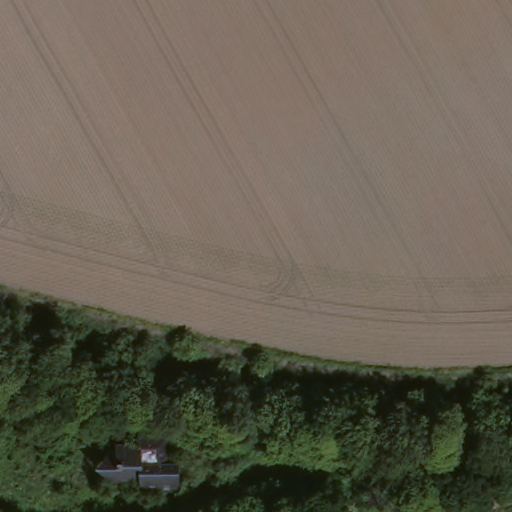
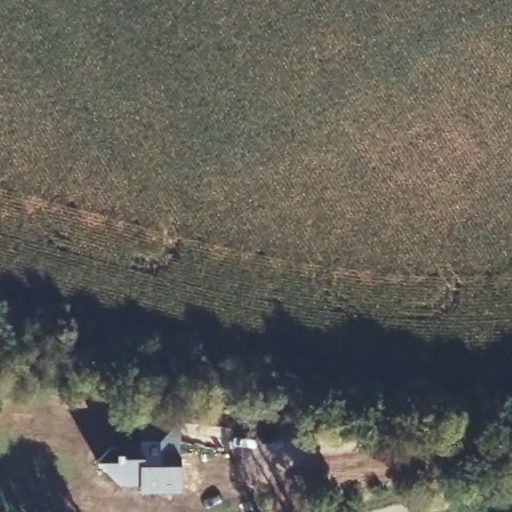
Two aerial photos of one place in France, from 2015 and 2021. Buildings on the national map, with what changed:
unchanged [(110,444),(119,444),(121,438),(143,438),(144,420),(182,423),(181,490),(151,488),(136,480),(116,478),(97,458),(110,444)]

